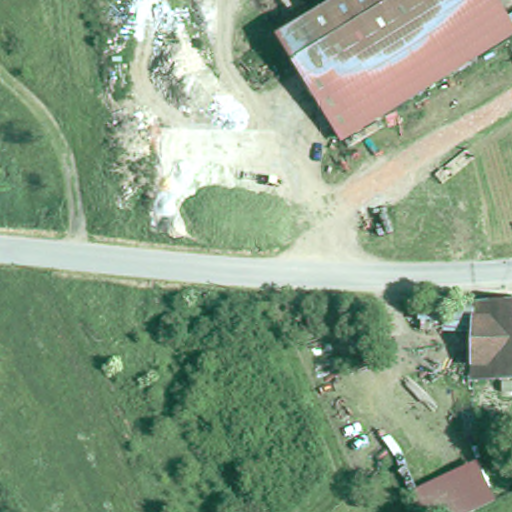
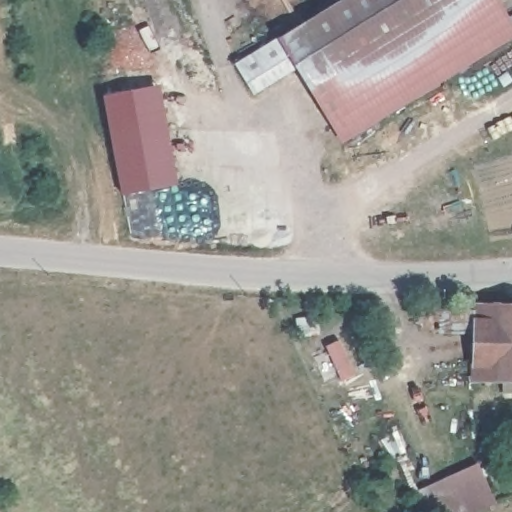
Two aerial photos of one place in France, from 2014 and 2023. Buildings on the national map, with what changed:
unchanged [(281,33),(335,0),(498,0),(512,24),(512,33),(344,136),(281,33)]
new [(281,33),(300,64),(254,93),(236,62),(281,33)]
new [(178,181),(121,192),(103,95),(161,84),(178,181)]
unchanged [(474,381),(476,304),(512,306),(512,381),(474,381)]
unchanged [(472,322),(421,319),(422,309),(472,310),(472,322)]
unchanged [(497,502),(473,512),(416,512),(407,496),(479,462),(497,502)]

